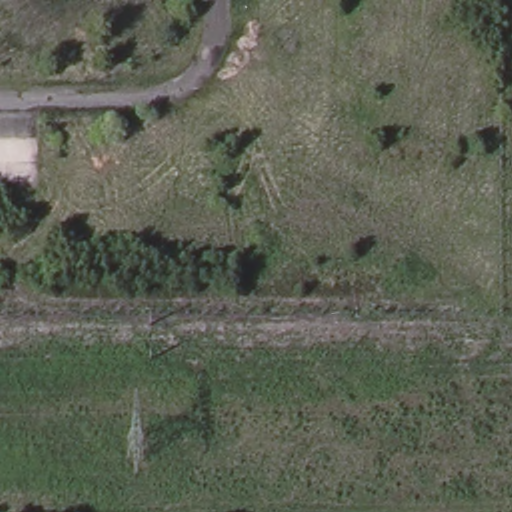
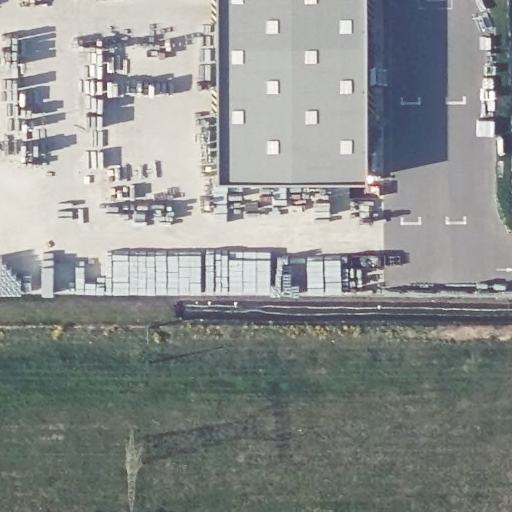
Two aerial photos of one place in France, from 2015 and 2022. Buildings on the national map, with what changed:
new [(368,185),(222,183),(219,0),(367,0),(368,185)]

